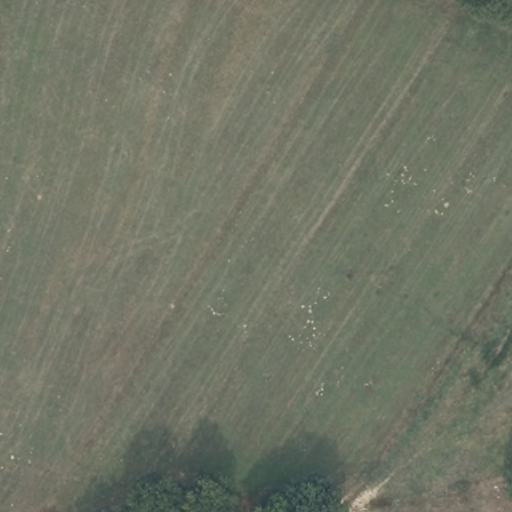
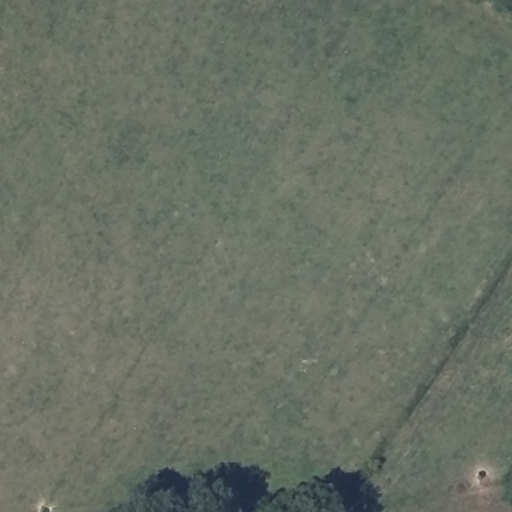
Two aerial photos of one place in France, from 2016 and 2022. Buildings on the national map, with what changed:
[]

